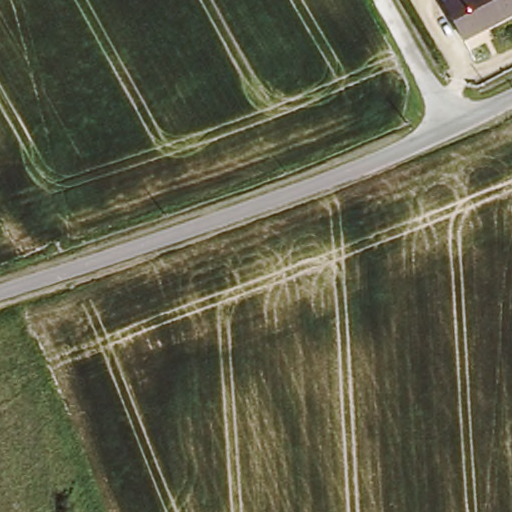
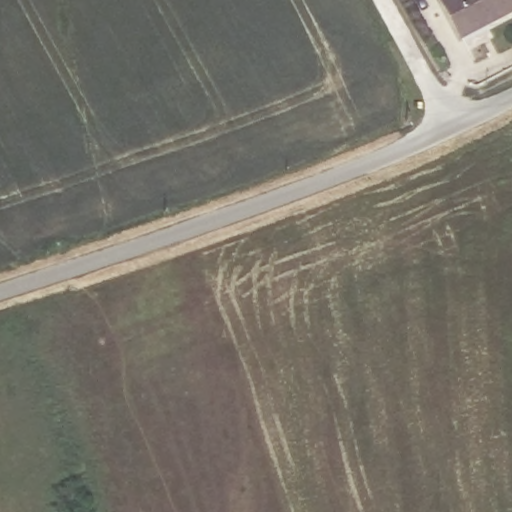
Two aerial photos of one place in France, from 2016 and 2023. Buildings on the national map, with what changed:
unchanged [(462,34),(444,0),(512,0),(512,8),(462,34)]

